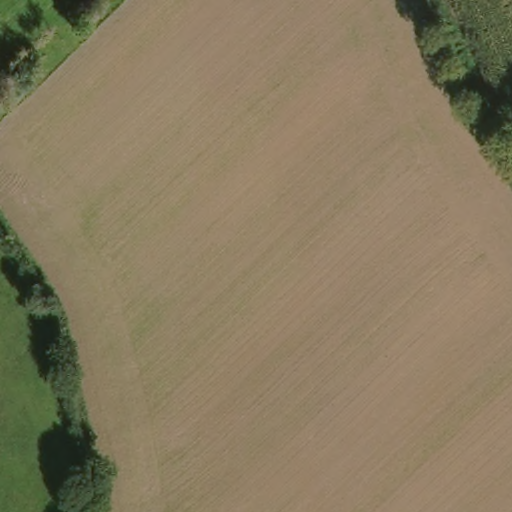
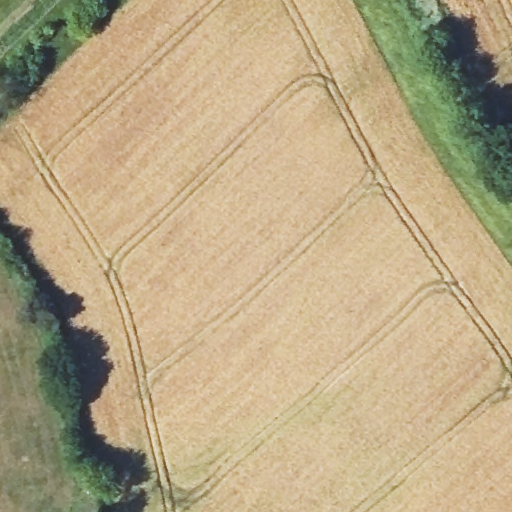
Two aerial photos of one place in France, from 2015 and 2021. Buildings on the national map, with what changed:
[]

